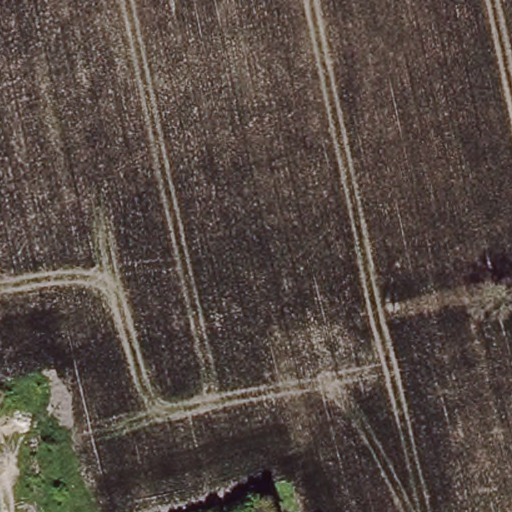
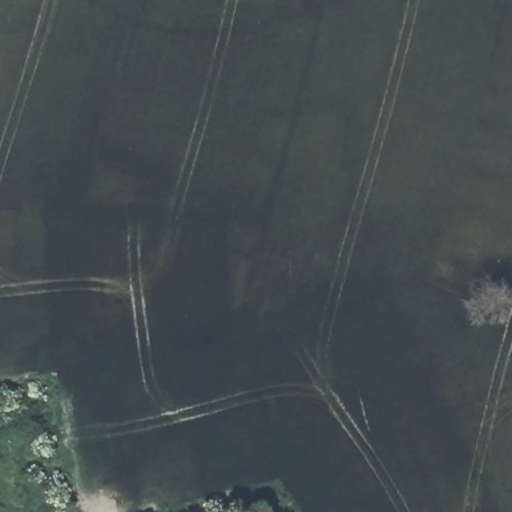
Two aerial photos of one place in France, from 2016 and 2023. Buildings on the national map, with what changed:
unchanged [(261,492),(272,512),(234,512),(261,492)]

